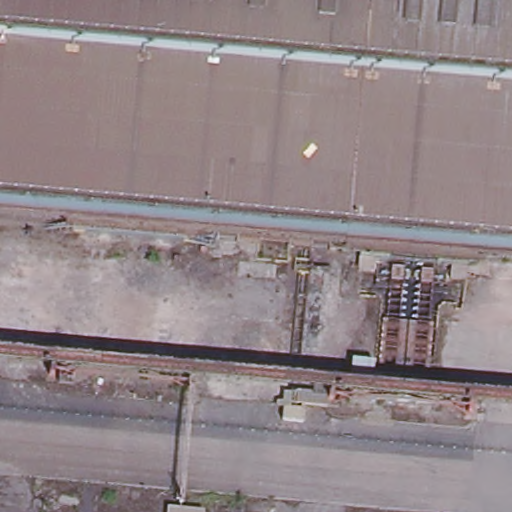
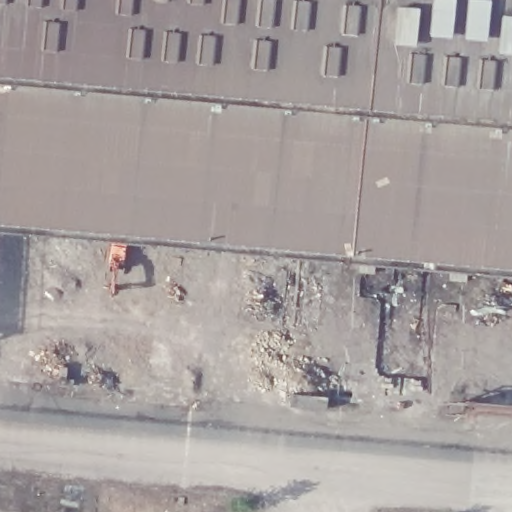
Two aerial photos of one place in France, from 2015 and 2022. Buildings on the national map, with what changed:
unchanged [(0,69),(0,0),(512,0),(512,115),(0,69)]
unchanged [(0,194),(0,69),(512,115),(512,239),(0,194)]
unchanged [(201,507),(201,512),(162,512),(162,503),(201,507)]

